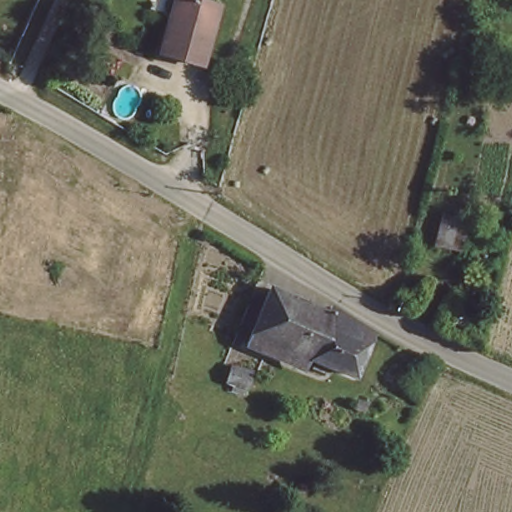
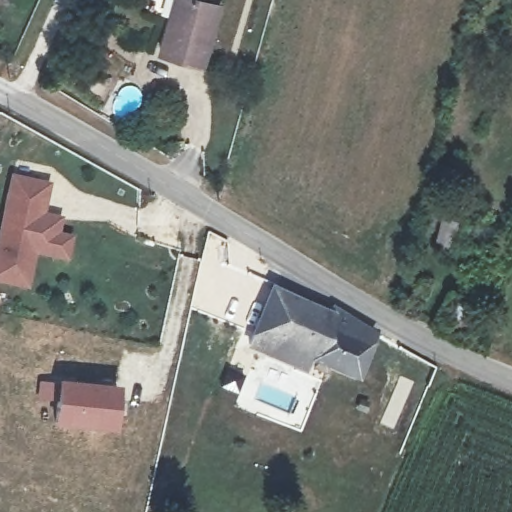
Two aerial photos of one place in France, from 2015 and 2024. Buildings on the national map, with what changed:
unchanged [(173,0),(209,0),(217,2),(204,64),(162,57),(173,0)]
new [(0,283),(0,217),(9,174),(50,181),(43,213),(62,216),(58,232),(73,235),(68,260),(35,254),(28,288),(0,283)]
unchanged [(477,236),(488,240),(484,253),(457,246),(466,215),(481,219),(477,236)]
demolished [(10,252),(21,226),(70,247),(61,274),(10,252)]
unchanged [(249,339),(264,292),(387,332),(371,379),(249,339)]
new [(36,379),(110,388),(106,427),(49,420),(52,396),(34,394),(36,379)]

